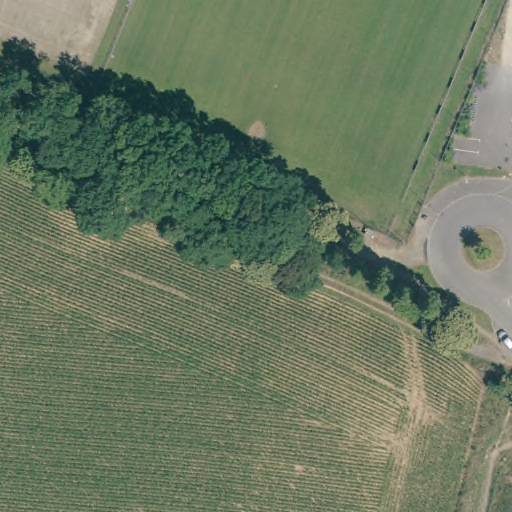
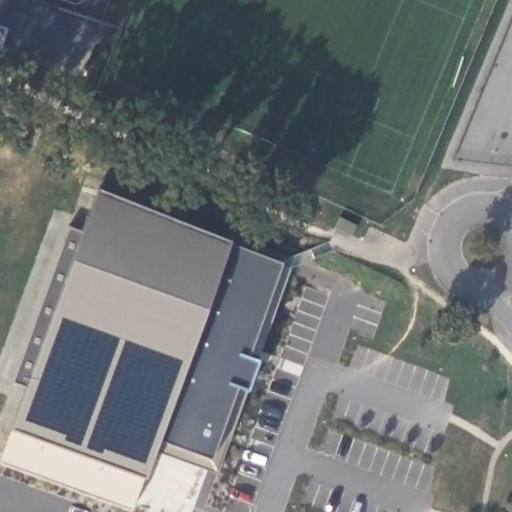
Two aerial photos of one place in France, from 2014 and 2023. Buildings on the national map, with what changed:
new [(8,432),(69,265),(96,191),(228,245),(281,265),(247,360),(257,363),(246,391),(247,392),(216,473),(155,451),(145,474),(144,478),(131,512),(0,466),(0,458),(8,432)]
new [(340,216),(357,225),(353,234),(336,225),(340,216)]

